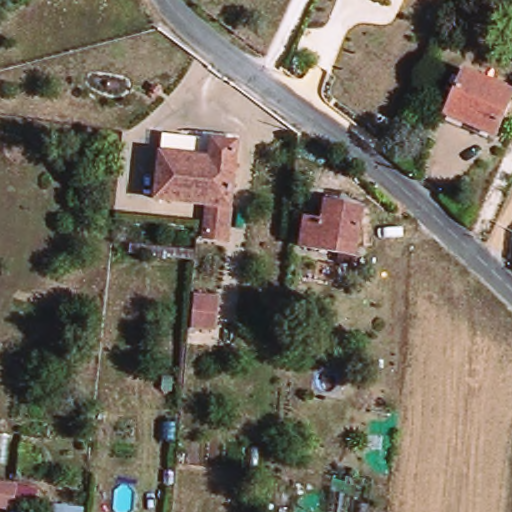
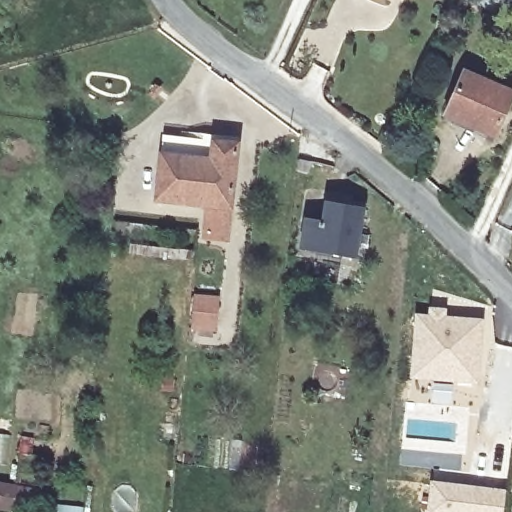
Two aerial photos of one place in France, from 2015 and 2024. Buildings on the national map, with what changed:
unchanged [(512,118),(503,138),(457,116),(475,74),(512,88),(512,118)]
unchanged [(172,134),(209,138),(206,154),(222,154),(223,138),(251,141),(245,207),(241,244),(214,243),(222,206),(166,200),(172,151),(172,134)]
unchanged [(332,226),(334,212),(370,215),(367,255),(312,249),(315,225),(332,226)]
unchanged [(220,295),(219,329),(192,328),(195,294),(220,295)]
new [(413,312),(427,313),(428,305),(446,307),(446,314),(484,317),(481,386),(408,378),(413,312)]
new [(430,479),(506,489),(503,512),(425,512),(430,479)]
unchanged [(0,503),(0,481),(7,482),(12,483),(10,504),(5,504),(0,503)]

